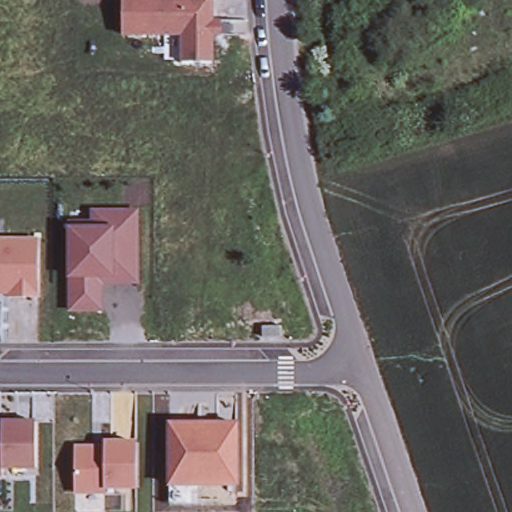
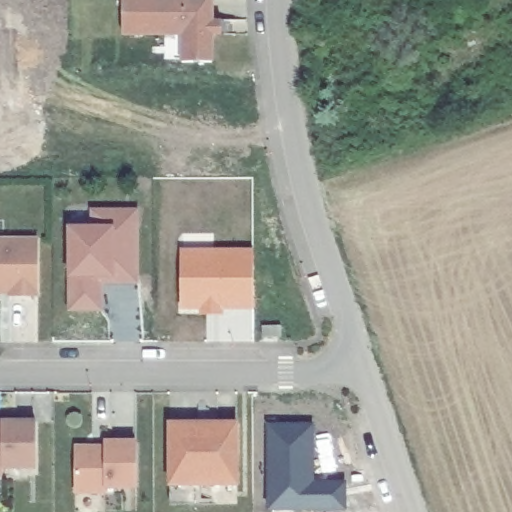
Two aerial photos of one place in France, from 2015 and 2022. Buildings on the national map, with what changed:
unchanged [(177,63),(177,35),(160,35),(117,35),(117,0),(207,0),(207,20),(217,20),(217,35),(207,35),(207,63),(177,63)]
unchanged [(95,282),(95,310),(65,310),(64,228),(64,222),(87,222),(87,210),(131,210),(131,228),(132,275),(132,282),(95,282)]
unchanged [(33,296),(4,296),(4,292),(0,292),(0,239),(33,239),(33,296)]
new [(252,252),(252,308),(181,307),(181,251),(252,252)]
unchanged [(276,325),(277,336),(257,337),(257,326),(276,325)]
unchanged [(0,467),(0,422),(32,422),(32,467),(0,467)]
unchanged [(232,423),(232,485),(165,485),(165,423),(232,423)]
new [(314,426),(314,482),(345,482),(346,510),(267,510),(267,423),(314,426)]
unchanged [(108,485),(107,492),(74,492),(74,445),(101,445),(102,440),(135,440),(136,485),(108,485)]

